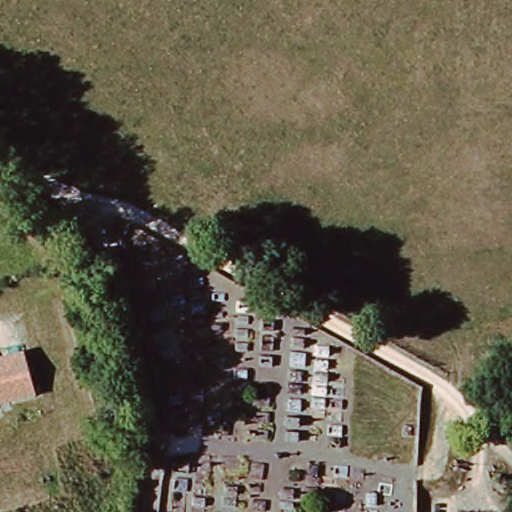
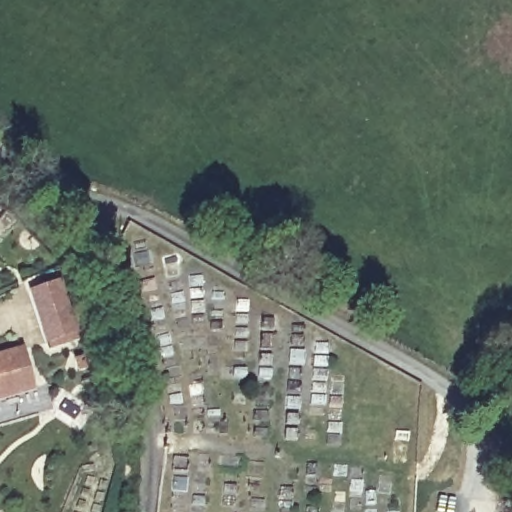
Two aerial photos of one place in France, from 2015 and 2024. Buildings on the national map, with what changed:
new [(78,342),(56,350),(45,345),(28,291),(58,281),(78,342)]
unchanged [(21,347),(34,390),(0,400),(0,353),(21,347)]

